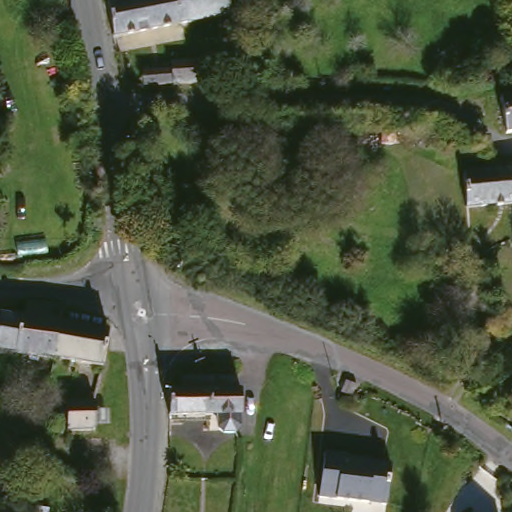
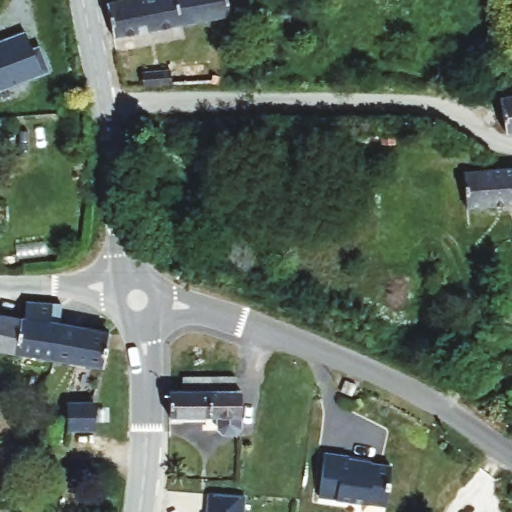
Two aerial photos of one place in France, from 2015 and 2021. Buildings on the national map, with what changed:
unchanged [(102,2),(117,0),(226,0),(230,20),(111,38),(102,2)]
new [(32,50),(39,46),(42,53),(49,71),(0,91),(0,42),(25,33),(32,50)]
unchanged [(206,76),(215,75),(215,81),(139,83),(139,73),(167,70),(167,63),(204,61),(206,76)]
unchanged [(498,108),(512,105),(512,142),(503,144),(498,108)]
unchanged [(457,172),(512,167),(512,203),(462,208),(457,172)]
unchanged [(51,362),(0,355),(0,319),(19,321),(22,306),(59,308),(56,328),(51,362)]
unchanged [(102,369),(51,362),(56,328),(107,333),(102,369)]
unchanged [(236,386),(235,401),(242,402),(240,426),(238,426),(237,438),(232,442),(219,441),(215,435),(216,423),(167,418),(169,393),(182,393),(184,378),(236,386)]
unchanged [(96,430),(67,432),(65,403),(93,402),(96,430)]
unchanged [(350,455),(350,461),(371,463),(373,461),(393,462),(391,503),(323,497),(326,452),(350,455)]
new [(246,497),(245,512),(206,512),(207,495),(246,497)]

